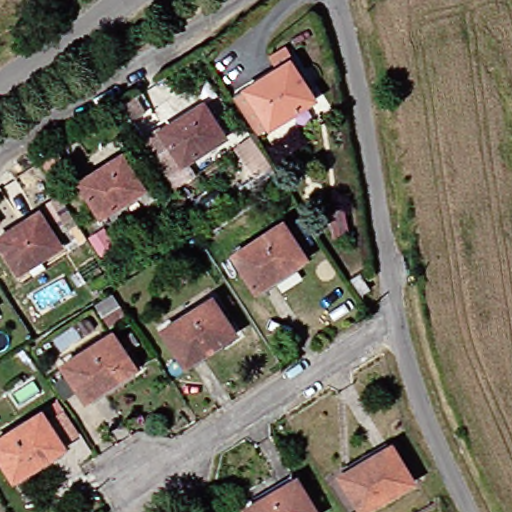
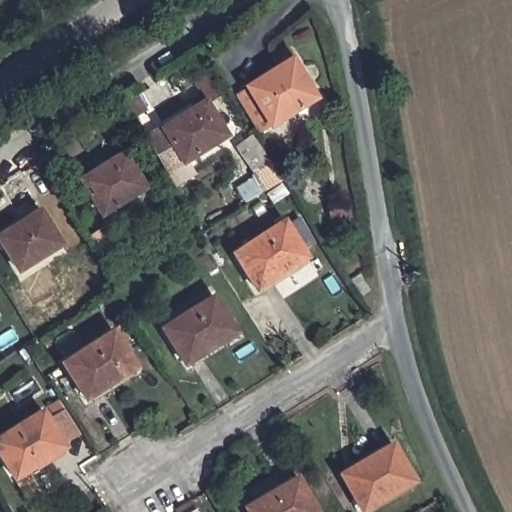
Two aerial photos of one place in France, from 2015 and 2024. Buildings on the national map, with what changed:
unchanged [(320,99),(266,132),(241,93),(295,59),(320,99)]
unchanged [(230,133),(184,159),(192,173),(173,184),(145,140),(212,101),(230,133)]
unchanged [(259,133),(272,155),(259,163),(245,141),(259,133)]
unchanged [(104,215),(84,180),(127,155),(149,188),(104,215)]
unchanged [(65,243),(22,269),(2,235),(44,209),(65,243)]
unchanged [(343,238),(331,245),(319,224),(332,216),(343,238)]
unchanged [(312,258),(264,289),(241,253),(290,223),(312,258)]
unchanged [(125,263),(112,243),(120,237),(133,258),(125,263)]
unchanged [(345,265),(354,260),(362,275),(351,281),(345,265)]
unchanged [(105,276),(100,267),(108,262),(114,271),(105,276)]
unchanged [(111,294),(96,305),(90,297),(106,286),(111,294)]
unchanged [(190,361),(171,329),(219,298),(239,330),(190,361)]
unchanged [(140,367),(90,397),(68,362),(118,332),(140,367)]
unchanged [(69,450),(21,478),(0,446),(0,441),(48,414),(69,450)]
unchanged [(419,482),(372,510),(352,478),(401,450),(419,482)]
unchanged [(303,481),(324,512),(258,512),(257,511),(303,481)]
unchanged [(203,512),(204,511),(204,512),(203,512)]

